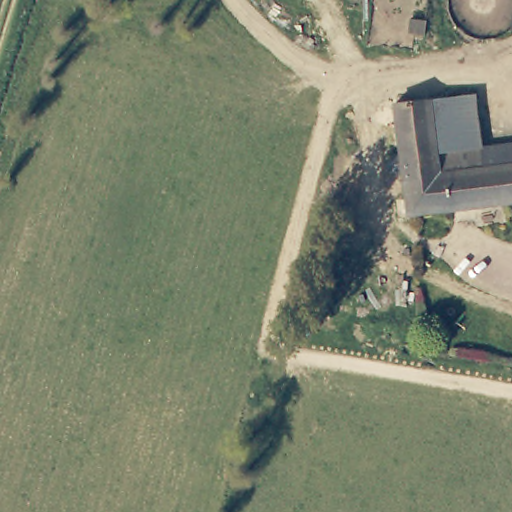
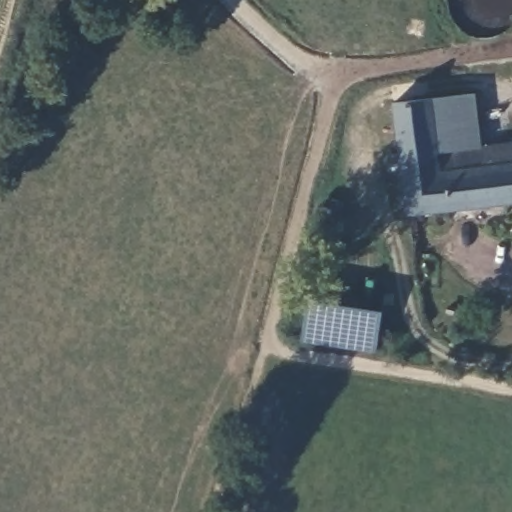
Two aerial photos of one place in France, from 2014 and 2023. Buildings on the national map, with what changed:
unchanged [(474,144),(430,148),(424,97),(468,91),(474,144)]
unchanged [(390,101),(424,97),(430,148),(474,144),(512,140),(512,199),(403,212),(390,101)]
demolished [(388,322),(418,283),(429,292),(399,331),(388,322)]
new [(375,353),(298,342),(306,299),(382,311),(375,353)]

